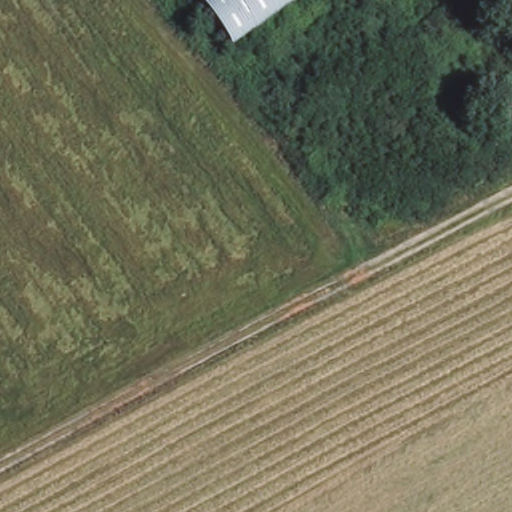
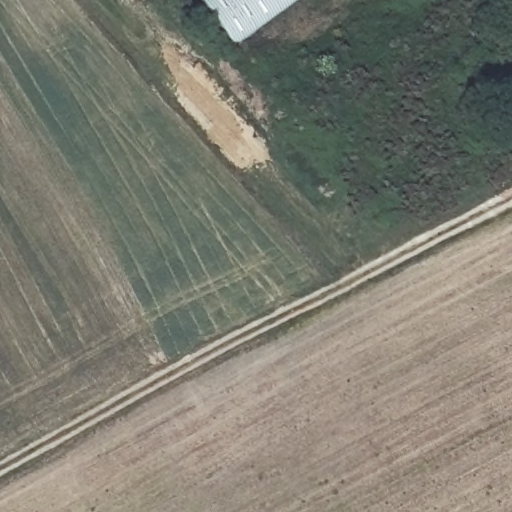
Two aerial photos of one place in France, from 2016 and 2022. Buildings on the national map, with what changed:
unchanged [(232,48),(197,0),(298,0),(232,48)]

